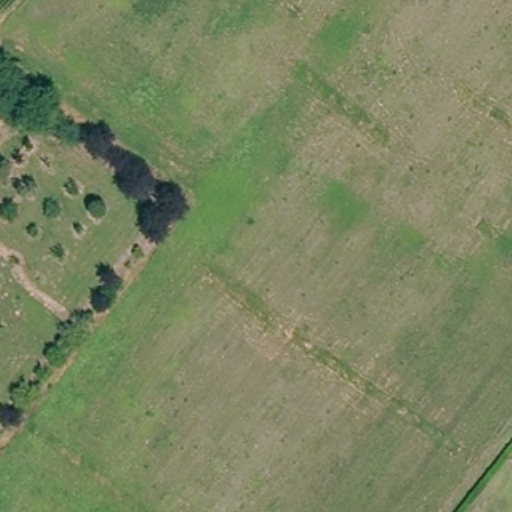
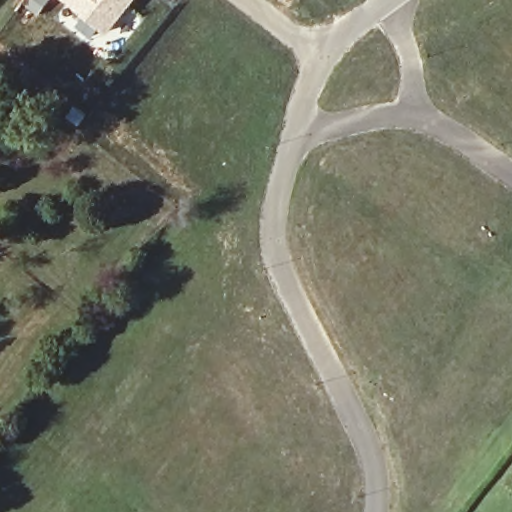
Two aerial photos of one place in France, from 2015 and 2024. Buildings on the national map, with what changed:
new [(98,29),(91,38),(72,24),(81,15),(62,0),(133,0),(106,35),(98,29)]

